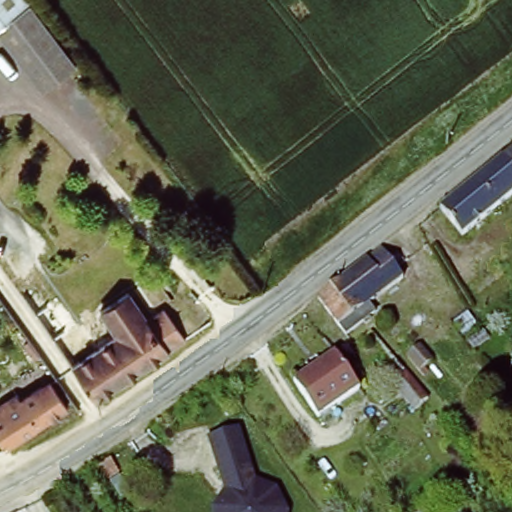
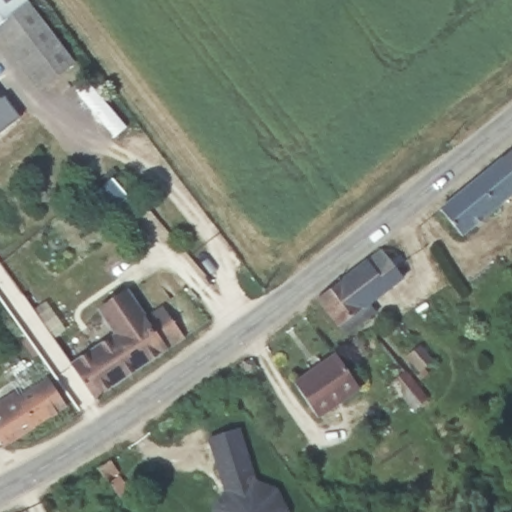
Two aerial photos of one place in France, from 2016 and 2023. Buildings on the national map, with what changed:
unchanged [(80,67),(47,92),(0,31),(0,0),(28,0),(80,67)]
new [(1,100),(5,96),(21,119),(0,135),(0,98),(1,100)]
unchanged [(455,230),(447,236),(437,225),(445,219),(440,212),(512,153),(512,200),(462,240),(455,230)]
unchanged [(407,260),(394,269),(402,281),(365,306),(362,310),(367,318),(342,332),(324,309),(317,300),(393,243),(397,249),(407,260)]
unchanged [(101,396),(76,361),(120,331),(104,306),(132,287),(150,315),(169,302),(189,333),(175,343),(177,346),(101,396)]
unchanged [(434,360),(417,373),(404,355),(420,343),(434,360)]
unchanged [(337,355),(362,388),(319,419),(295,385),(337,355)]
unchanged [(425,399),(410,410),(390,385),(405,373),(425,399)]
unchanged [(0,428),(0,401),(18,389),(21,393),(50,375),(70,406),(10,444),(0,428)]
unchanged [(218,498),(224,491),(205,439),(232,430),(252,483),(261,485),(268,488),(276,495),(284,512),(212,512),(212,510),(218,498)]
unchanged [(97,472),(110,464),(117,475),(105,483),(97,472)]

